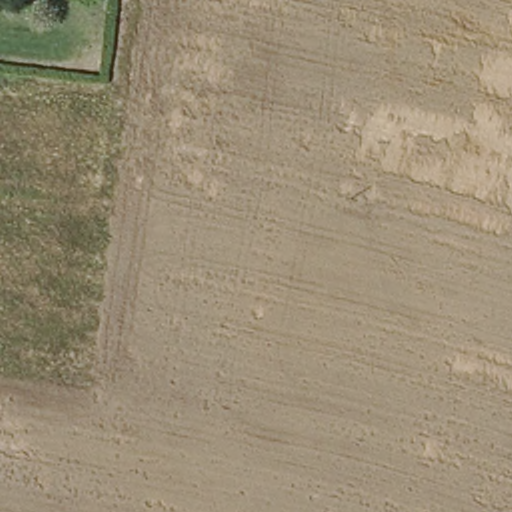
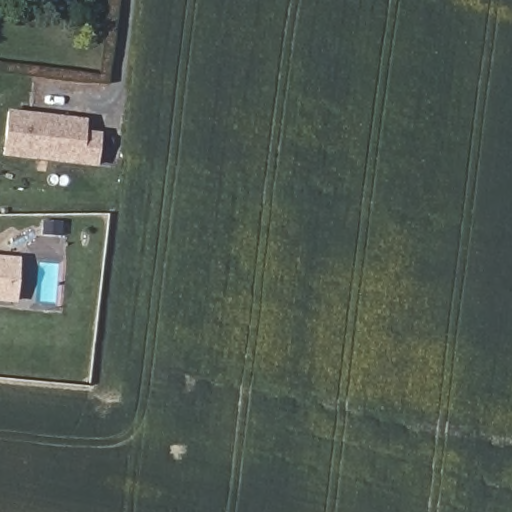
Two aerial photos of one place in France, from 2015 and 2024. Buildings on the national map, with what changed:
new [(80,118),(78,130),(94,131),(91,161),(0,152),(0,147),(4,110),(80,118)]
new [(0,303),(0,256),(20,257),(16,304),(0,303)]

